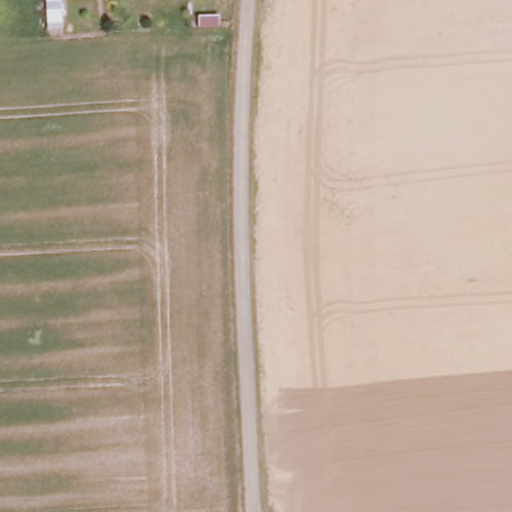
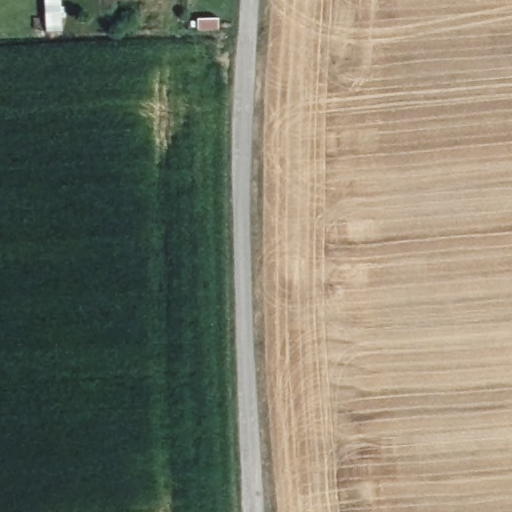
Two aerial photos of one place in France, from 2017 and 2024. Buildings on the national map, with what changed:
unchanged [(47,0),(61,0),(62,29),(47,29),(47,0)]

